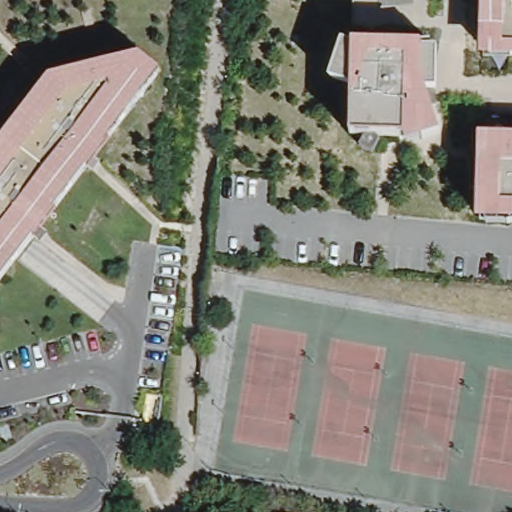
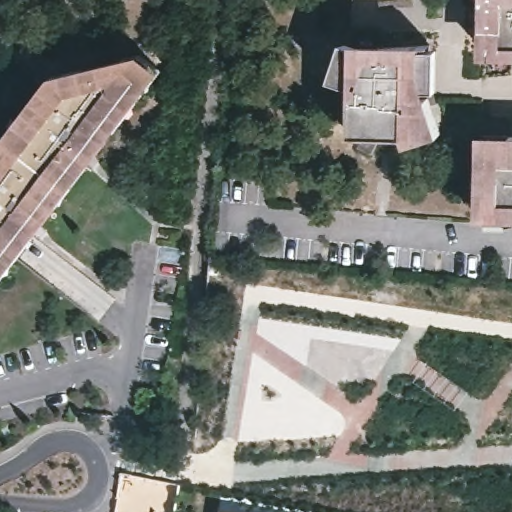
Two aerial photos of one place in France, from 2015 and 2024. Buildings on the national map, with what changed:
unchanged [(479,0),(512,0),(512,51),(480,50),(479,0)]
unchanged [(349,91),(329,79),(343,41),(354,39),(433,40),(436,135),(351,131),(349,91)]
unchanged [(50,73),(137,50),(160,65),(0,279),(0,138),(50,73)]
unchanged [(478,130),(512,132),(512,217),(476,216),(478,130)]

